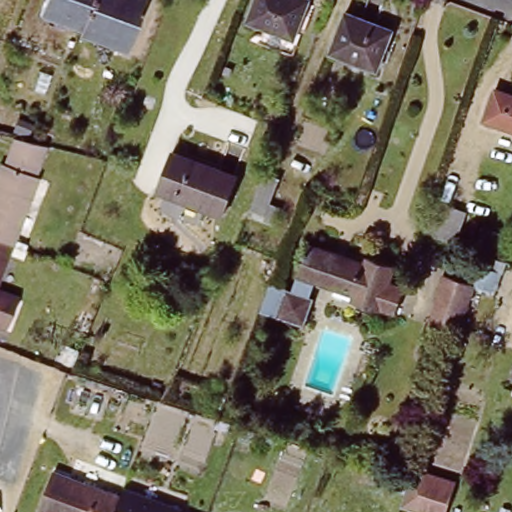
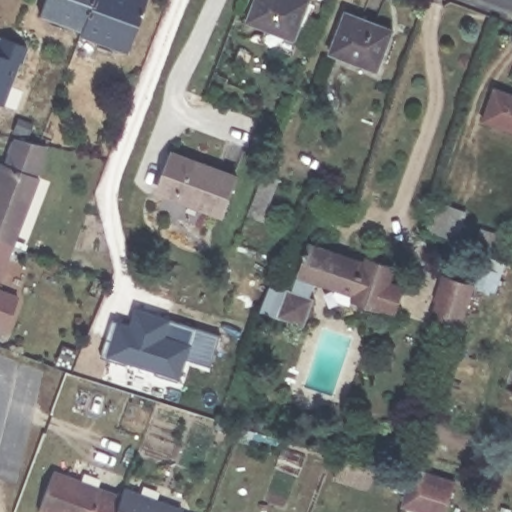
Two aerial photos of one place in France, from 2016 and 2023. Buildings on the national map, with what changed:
unchanged [(80,27),(39,12),(44,0),(90,0),(80,27)]
unchanged [(124,49),(78,32),(80,27),(90,0),(142,0),(124,49)]
unchanged [(251,0),(306,0),(291,37),(243,19),(251,0)]
unchanged [(343,11),(389,29),(374,70),(328,51),(343,11)]
unchanged [(493,90),(512,97),(512,130),(482,120),(493,90)]
unchanged [(11,244),(9,243),(0,240),(0,163),(2,163),(12,136),(37,142),(45,144),(33,175),(36,176),(11,244)]
unchanged [(201,206),(203,203),(186,196),(164,187),(156,184),(169,149),(178,152),(200,160),(233,173),(219,212),(201,206)]
unchanged [(262,215),(247,208),(263,169),(278,175),(262,215)]
unchanged [(450,244),(437,239),(419,233),(430,204),(460,214),(450,244)]
unchanged [(487,244),(477,241),(481,227),(492,230),(501,234),(496,248),(487,244)]
unchanged [(314,276),(309,292),(314,293),(304,322),(259,307),(269,278),(291,286),(308,239),(351,254),(351,256),(364,261),(366,252),(393,261),(388,275),(404,281),(395,307),(379,301),(378,305),(351,296),(354,290),(314,276)]
unchanged [(0,267),(0,240),(9,243),(0,267)]
unchanged [(462,335),(434,325),(442,301),(440,300),(449,274),(479,284),(462,335)]
unchanged [(13,298),(2,327),(0,326),(0,293),(13,298)]
new [(211,366),(188,359),(181,382),(156,374),(157,372),(129,363),(128,366),(102,357),(113,320),(129,325),(134,307),(197,329),(220,336),(211,366)]
unchanged [(47,512),(34,507),(50,465),(116,491),(109,512),(47,512)]
unchanged [(120,483),(178,505),(176,510),(180,512),(109,512),(116,491),(120,483)]
unchanged [(415,512),(424,485),(452,495),(447,512),(415,512)]

